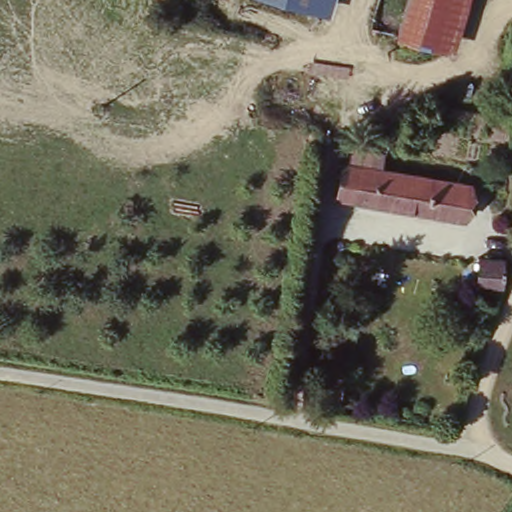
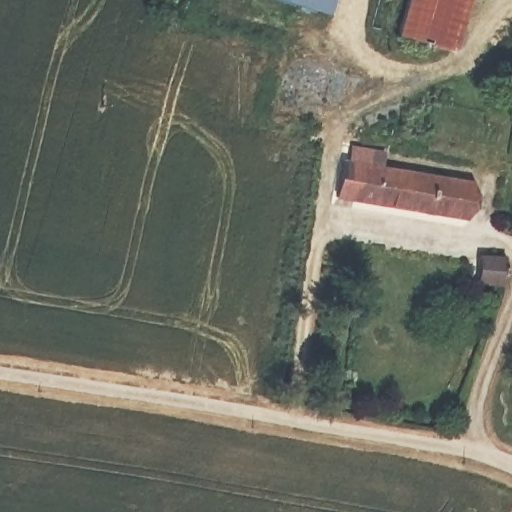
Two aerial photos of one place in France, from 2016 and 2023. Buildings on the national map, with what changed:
unchanged [(329,17),(273,0),(335,0),(329,17)]
unchanged [(438,53),(401,39),(413,0),(455,0),(438,53)]
unchanged [(339,202),(343,168),(473,187),(470,219),(346,204),(339,202)]
unchanged [(484,287),(489,259),(508,264),(502,293),(484,287)]

